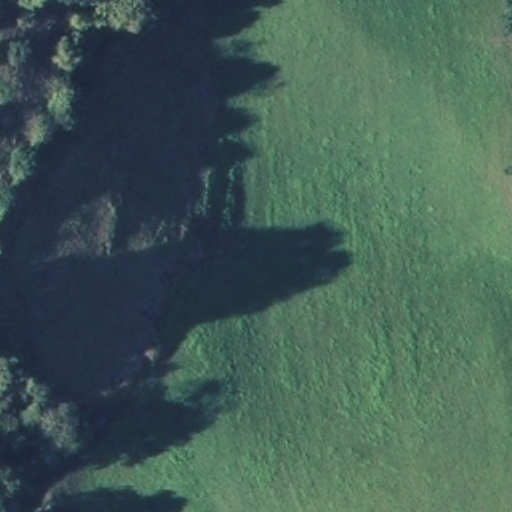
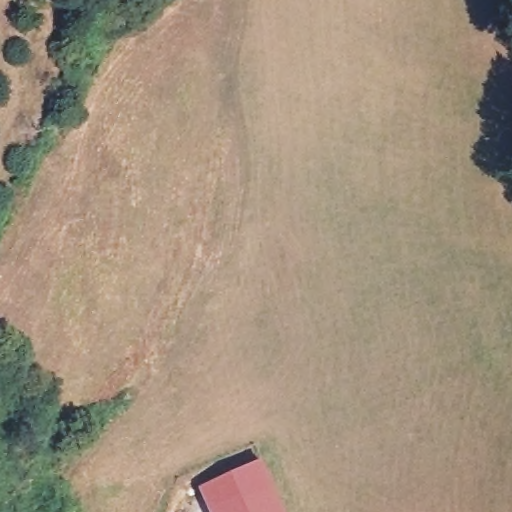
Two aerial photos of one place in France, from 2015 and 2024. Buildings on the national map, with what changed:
new [(209,512),(200,489),(262,461),(284,512),(209,512)]

